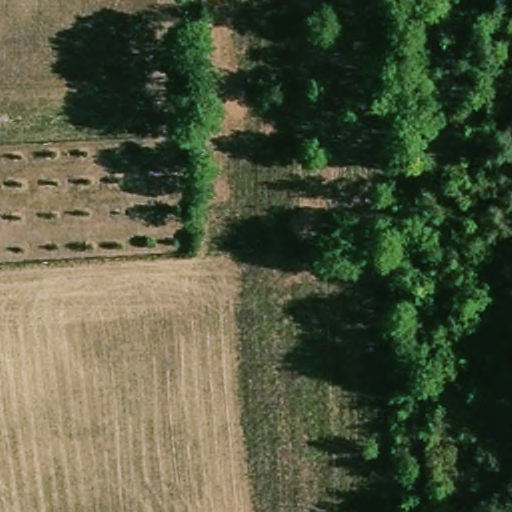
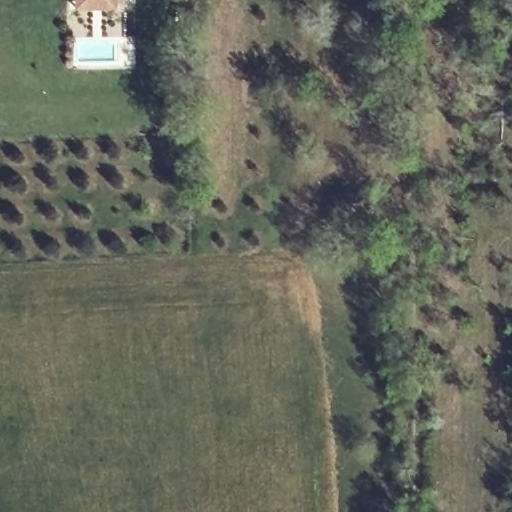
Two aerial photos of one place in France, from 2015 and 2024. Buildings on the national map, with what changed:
new [(120,12),(77,10),(78,0),(120,0),(120,12)]

